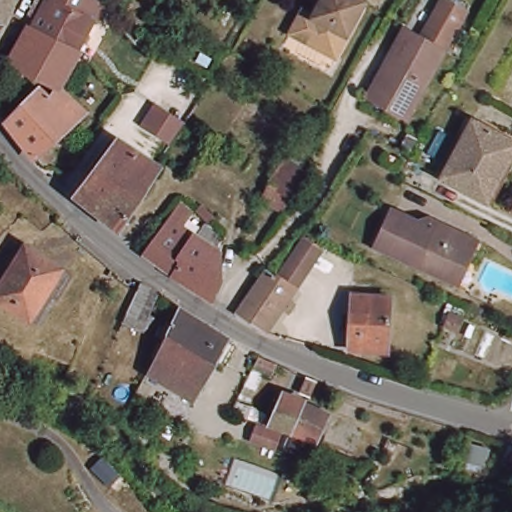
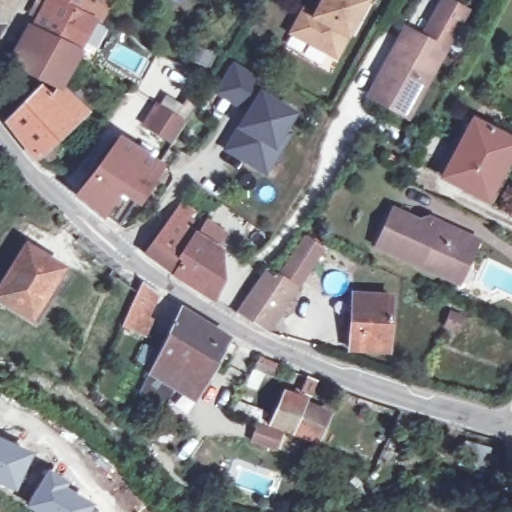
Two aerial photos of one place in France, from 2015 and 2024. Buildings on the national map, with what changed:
unchanged [(0,32),(0,0),(20,0),(0,32)]
unchanged [(47,2),(48,0),(88,0),(92,2),(84,16),(96,23),(78,56),(66,50),(38,36),(32,32),(47,2)]
unchanged [(306,14),(317,20),(328,0),(360,0),(368,5),(338,61),(304,43),(294,37),(306,14)]
unchanged [(406,120),(368,99),(405,33),(420,42),(442,1),(466,12),(406,120)]
unchanged [(49,161),(40,170),(35,165),(7,127),(33,101),(40,95),(50,103),(57,90),(13,67),(32,32),(38,36),(66,50),(78,56),(78,57),(59,91),(85,116),(74,127),(43,155),(49,161)]
new [(280,149),(266,171),(228,147),(252,111),(221,91),(237,65),(273,87),(267,96),(295,114),(285,131),(290,134),(280,149)]
unchanged [(143,124),(157,102),(182,119),(181,120),(169,140),(143,124)]
unchanged [(447,181),(478,124),(506,140),(512,143),(512,166),(491,204),(447,181)]
unchanged [(131,147),(158,165),(119,227),(79,197),(81,194),(121,140),(131,147)]
unchanged [(225,280),(215,300),(202,295),(162,267),(149,257),(164,237),(165,237),(180,217),(184,220),(188,213),(223,237),(214,252),(221,257),(225,280)]
unchanged [(455,282),(421,267),(421,266),(412,261),(411,262),(380,248),(397,214),(422,225),(431,222),(481,246),(470,269),(468,267),(460,285),(455,282)]
unchanged [(241,313),(271,268),(281,275),(284,277),(308,239),(323,249),(300,286),(270,331),(241,313)]
unchanged [(57,289),(37,322),(30,318),(0,299),(0,289),(11,272),(15,273),(30,249),(62,267),(71,273),(61,291),(57,289)]
unchanged [(145,317),(128,310),(136,291),(141,282),(156,293),(145,317)]
unchanged [(357,293),(395,296),(392,350),(354,348),(357,293)]
unchanged [(218,352),(213,361),(166,332),(177,307),(218,333),(226,338),(218,352)]
unchanged [(205,377),(192,397),(191,396),(186,403),(173,395),(177,387),(148,371),(166,332),(213,361),(205,377)]
unchanged [(255,367),(260,357),(275,363),(270,375),(255,367)]
unchanged [(308,377),(317,380),(311,394),(303,390),(308,377)]
unchanged [(307,403),(329,416),(315,444),(270,426),(284,392),(308,401),(307,403)]
new [(14,491),(0,485),(0,436),(32,452),(14,491)]
unchanged [(465,443),(488,450),(484,465),(460,457),(465,443)]
new [(100,512),(36,512),(24,505),(47,468),(100,512)]
unchanged [(365,493),(364,493),(349,498),(349,495),(360,484),(365,493)]

